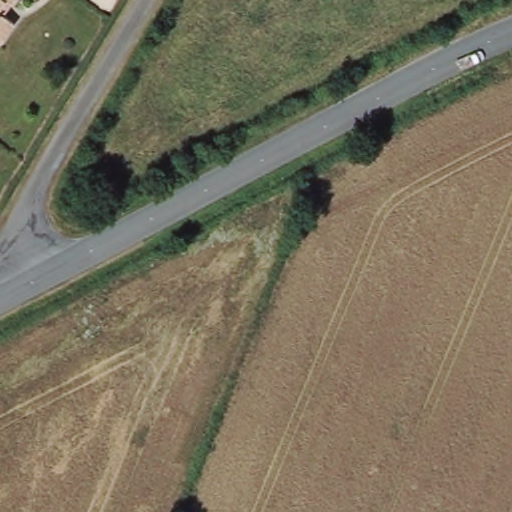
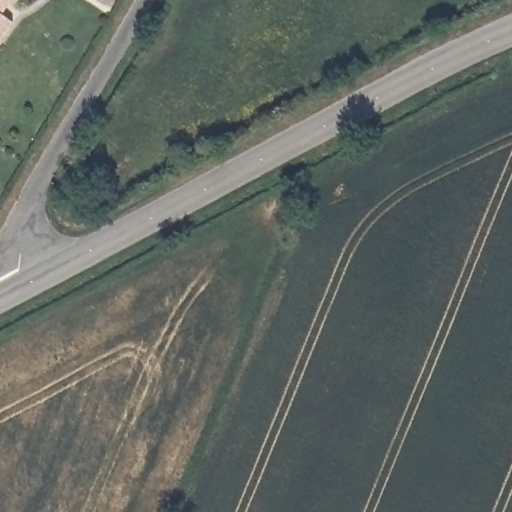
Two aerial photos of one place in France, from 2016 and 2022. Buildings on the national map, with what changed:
unchanged [(2,0),(8,0),(6,2),(0,10),(0,0),(2,0)]
unchanged [(0,35),(0,13),(10,20),(0,35)]

